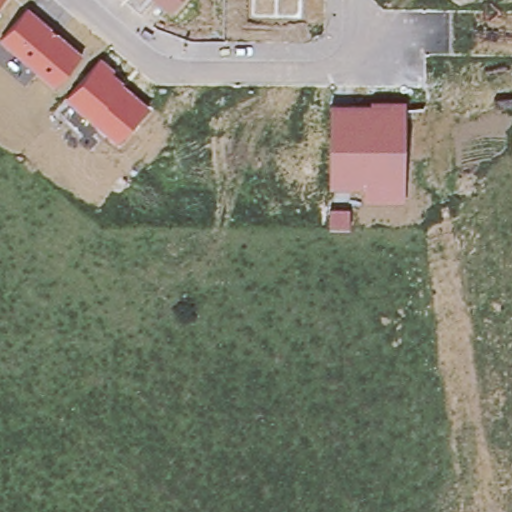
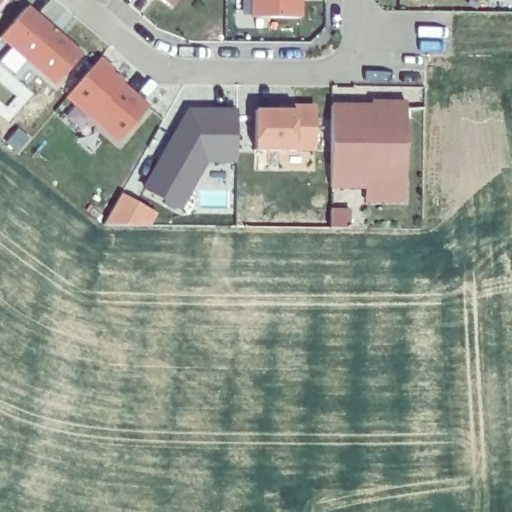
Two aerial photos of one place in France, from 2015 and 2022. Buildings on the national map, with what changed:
unchanged [(0,0),(3,0),(0,3),(0,0)]
unchanged [(177,0),(170,8),(161,0),(177,0)]
unchanged [(251,16),(251,0),(300,0),(300,19),(251,16)]
unchanged [(1,37),(28,6),(85,53),(57,84),(1,37)]
unchanged [(67,96),(101,57),(115,68),(113,70),(125,80),(123,82),(151,104),(118,141),(67,96)]
unchanged [(364,188),(330,189),(331,105),(371,105),(371,100),(407,101),(405,203),(365,202),(364,188)]
new [(281,112),(281,107),(301,108),(312,108),(317,113),(317,154),(256,153),(257,112),(281,112)]
new [(190,114),(239,114),(238,164),(208,163),(181,210),(147,190),(190,114)]

